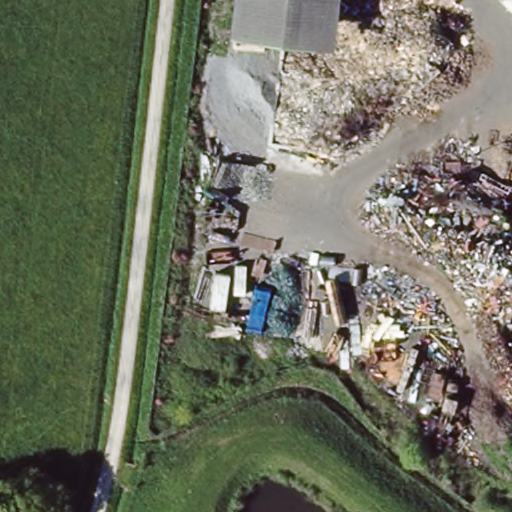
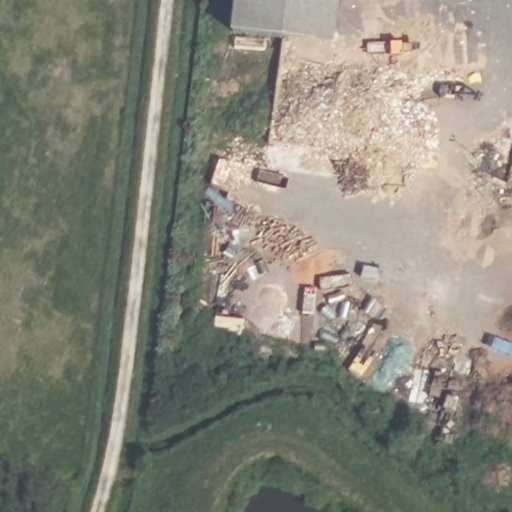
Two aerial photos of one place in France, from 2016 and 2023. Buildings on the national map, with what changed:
unchanged [(340,42),(237,29),(239,0),(344,0),(340,42)]

